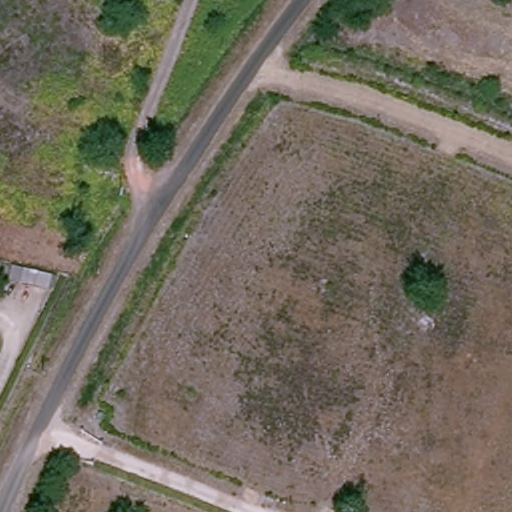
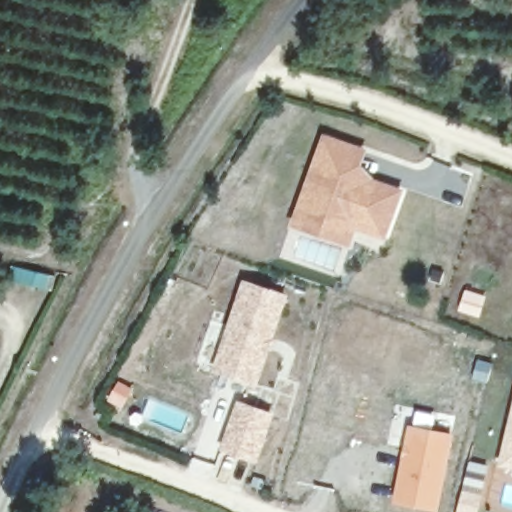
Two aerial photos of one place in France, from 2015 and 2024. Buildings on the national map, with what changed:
new [(325,144),(357,155),(364,157),(356,180),(401,196),(385,240),(355,230),(352,240),(351,239),(348,249),(294,230),(298,221),(325,144)]
new [(243,290),(282,303),(254,390),(215,376),(243,290)]
new [(237,398),(275,412),(257,462),(217,447),(237,398)]
new [(512,470),(502,468),(506,451),(512,427),(512,470)]
new [(451,440),(438,512),(425,512),(397,506),(411,433),(451,440)]
new [(480,498),(477,512),(462,512),(466,495),(480,498)]

